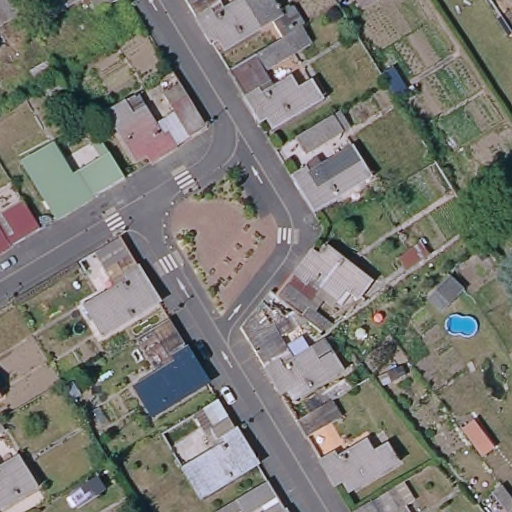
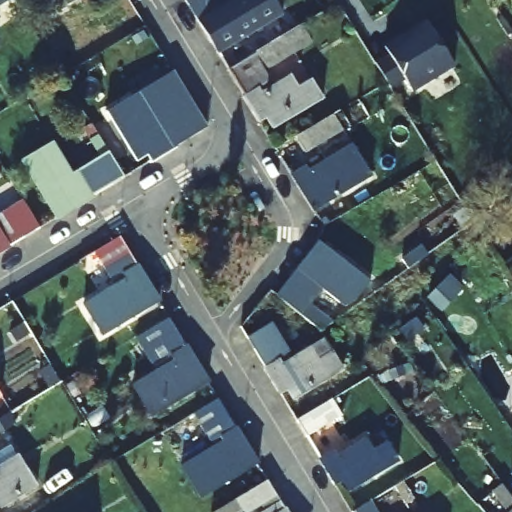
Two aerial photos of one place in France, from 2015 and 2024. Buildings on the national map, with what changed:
unchanged [(0,26),(0,0),(27,0),(31,7),(0,26)]
unchanged [(38,0),(77,0),(48,17),(38,0)]
unchanged [(89,0),(114,0),(96,11),(89,0)]
unchanged [(270,20),(225,49),(218,38),(211,41),(210,42),(185,0),(218,0),(222,8),(235,0),(274,0),(281,13),(292,7),(302,25),(300,26),(281,38),(270,20)]
new [(387,54),(382,46),(399,36),(400,39),(426,23),(452,65),(410,91),(403,79),(389,88),(373,63),(387,54)]
unchanged [(310,41),(262,72),(271,86),(288,76),(296,89),(310,80),(321,98),(272,129),(266,119),(260,122),(229,70),(281,38),(300,26),(310,41)]
unchanged [(0,47),(0,34),(5,44),(0,47)]
unchanged [(60,76),(40,88),(30,70),(50,59),(60,76)]
unchanged [(205,126),(150,161),(145,154),(136,160),(106,113),(137,94),(155,123),(173,111),(155,83),(172,73),(205,126)]
unchanged [(355,131),(310,159),(300,144),(345,115),(355,131)]
unchanged [(123,177),(93,194),(91,198),(56,219),(55,217),(23,162),(52,144),(73,179),(100,163),(87,143),(97,136),(123,177)]
unchanged [(374,179),(318,215),(296,180),(312,172),(312,167),(321,161),(326,169),(356,150),(374,179)]
unchanged [(0,249),(0,216),(3,214),(1,211),(18,200),(35,228),(0,249)]
unchanged [(158,300),(157,301),(101,336),(83,305),(114,287),(93,252),(119,237),(158,300)]
unchanged [(336,307),(327,301),(319,312),(336,324),(326,332),(317,324),(285,299),(283,299),(281,297),(300,274),(298,273),(315,250),(322,255),(330,247),(375,280),(362,298),(350,289),(340,299),(341,299),(336,307)]
unchanged [(277,322),(285,336),(298,358),(328,339),(345,369),(297,399),(290,389),(283,393),(268,368),(269,367),(245,327),(258,309),(268,327),(277,322)]
unchanged [(207,382),(150,416),(132,387),(156,372),(136,337),(168,318),(207,382)]
unchanged [(256,468),(199,503),(182,474),(214,454),(192,419),(217,404),(256,468)]
unchanged [(331,421),(306,436),(297,420),(322,405),(331,421)]
unchanged [(0,432),(0,425),(3,430),(0,432)]
unchanged [(377,452),(391,444),(401,461),(351,491),(345,480),(337,484),(324,462),(326,461),(338,454),(340,457),(370,441),(377,452)]
unchanged [(5,507),(0,499),(0,463),(2,467),(21,455),(40,485),(5,507)]
unchanged [(412,500),(403,505),(392,487),(401,482),(412,500)]
unchanged [(245,508),(239,512),(214,512),(239,497),(245,508)]
unchanged [(286,512),(262,512),(280,502),(286,512)]
unchanged [(375,512),(352,512),(351,512),(368,502),(375,512)]
unchanged [(510,505),(512,504),(512,508),(510,505)]

